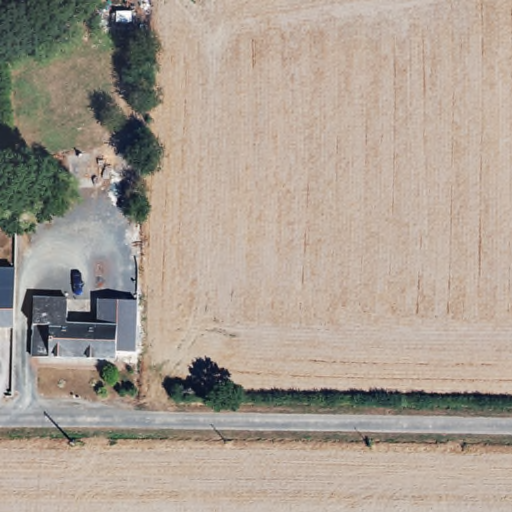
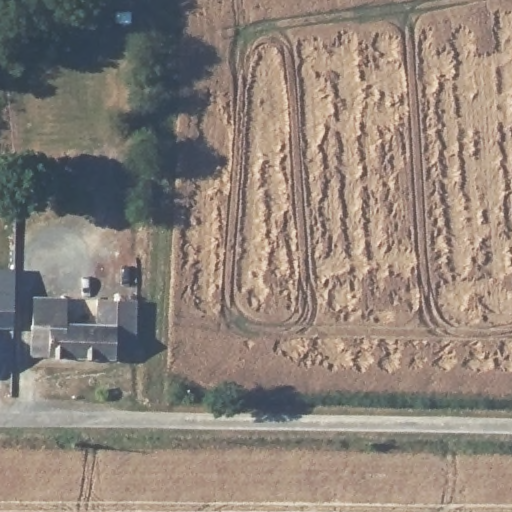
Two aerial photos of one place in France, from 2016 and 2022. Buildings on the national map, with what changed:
unchanged [(9,266),(10,324),(0,324),(0,267),(9,266)]
unchanged [(137,301),(136,364),(114,363),(115,326),(95,326),(95,301),(137,301)]
unchanged [(65,303),(65,325),(95,326),(115,326),(114,363),(30,362),(31,302),(65,303)]

